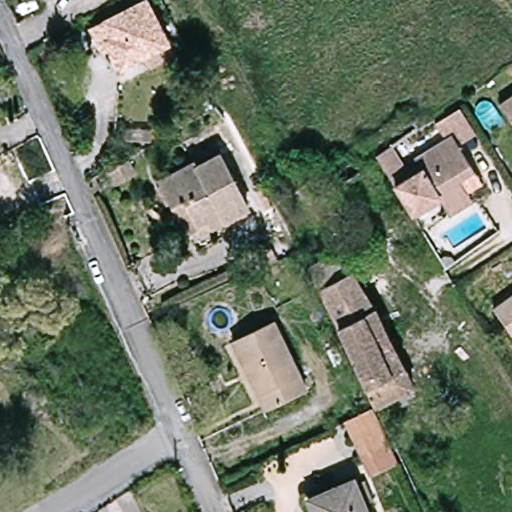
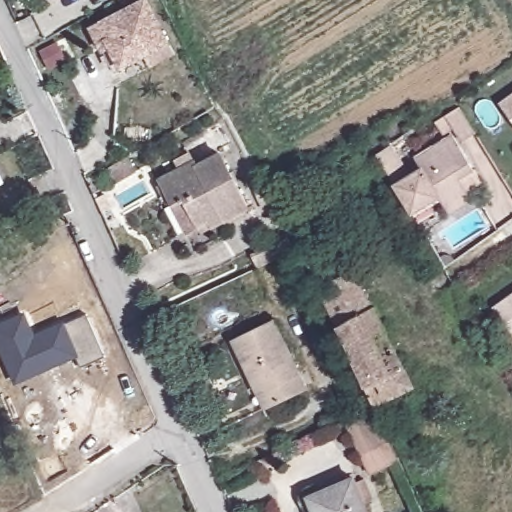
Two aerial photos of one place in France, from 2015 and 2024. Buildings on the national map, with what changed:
unchanged [(108,42),(118,37),(109,20),(145,0),(153,0),(177,44),(125,72),(108,42)]
unchanged [(508,102),(512,99),(512,108),(508,102)]
unchanged [(383,159),(399,148),(415,175),(424,171),(419,161),(449,144),(439,124),(467,109),(481,136),(468,147),(483,175),(471,184),(481,205),(454,219),(447,203),(418,217),(383,159)]
demolished [(352,182),(336,160),(352,147),(370,171),(352,182)]
unchanged [(327,201),(311,179),(302,168),(322,153),(330,164),(346,187),(327,201)]
unchanged [(126,160),(134,175),(114,185),(106,171),(126,160)]
unchanged [(211,227),(207,218),(196,223),(183,195),(174,198),(166,177),(195,163),(198,171),(221,160),(244,211),(211,227)]
unchanged [(264,275),(259,262),(276,256),(281,267),(264,275)]
unchanged [(379,410),(314,274),(343,256),(389,312),(427,387),(379,410)]
unchanged [(494,308),(512,294),(512,333),(494,308)]
new [(81,367),(77,358),(16,385),(0,350),(0,323),(24,312),(35,334),(63,322),(64,324),(86,315),(105,356),(81,367)]
unchanged [(309,389),(263,407),(233,338),(280,320),(309,389)]
unchanged [(357,457),(353,446),(344,421),(368,411),(377,435),(381,447),(357,457)]
unchanged [(309,493),(321,488),(356,474),(359,481),(369,477),(376,497),(366,501),(370,512),(315,512),(309,493)]

